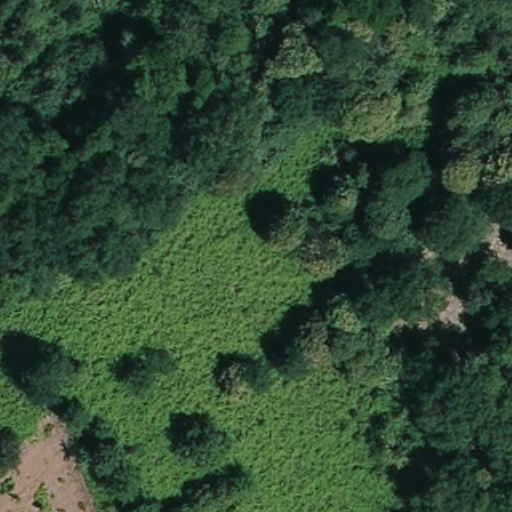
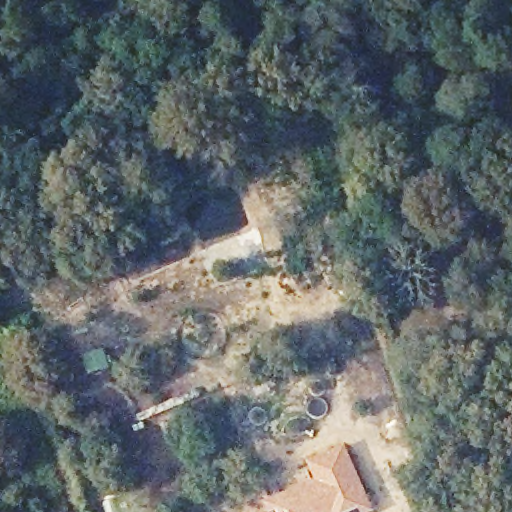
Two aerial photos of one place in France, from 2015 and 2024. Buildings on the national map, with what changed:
new [(313,481),(303,458),(344,440),(376,512),(375,512),(313,512),(299,487),(313,481)]

